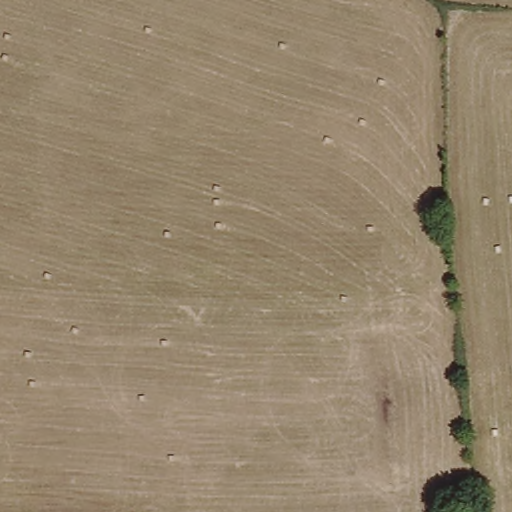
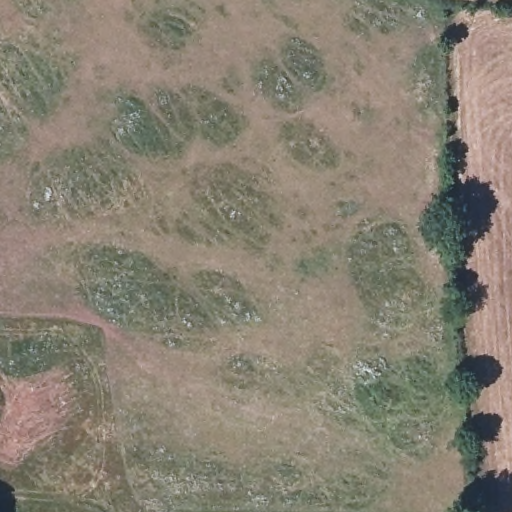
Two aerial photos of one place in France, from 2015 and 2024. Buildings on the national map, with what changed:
[]

